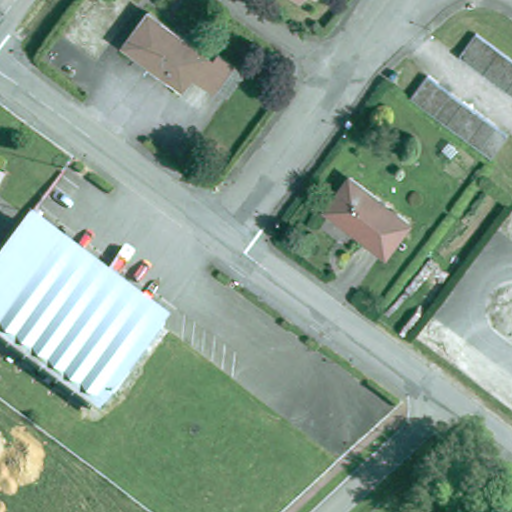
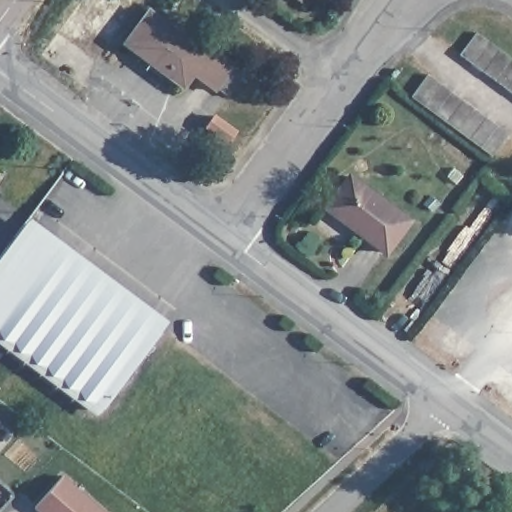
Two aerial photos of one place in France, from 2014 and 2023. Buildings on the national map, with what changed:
unchanged [(305,8),(294,0),(310,0),(305,8)]
unchanged [(208,56),(215,48),(230,61),(211,86),(190,69),(180,84),(125,40),(150,10),(208,56)]
unchanged [(460,55),(476,34),(512,60),(512,95),(482,72),(460,55)]
unchanged [(509,137),(492,158),(406,94),(430,78),(509,137)]
unchanged [(380,254),(322,208),(348,177),(406,221),(380,254)]
unchanged [(0,338),(0,260),(28,220),(63,244),(58,253),(162,332),(105,410),(98,405),(93,410),(0,338)]
new [(38,512),(33,508),(62,474),(106,512),(38,512)]

